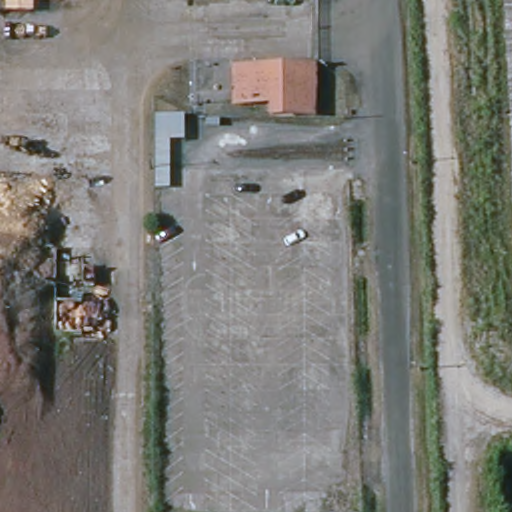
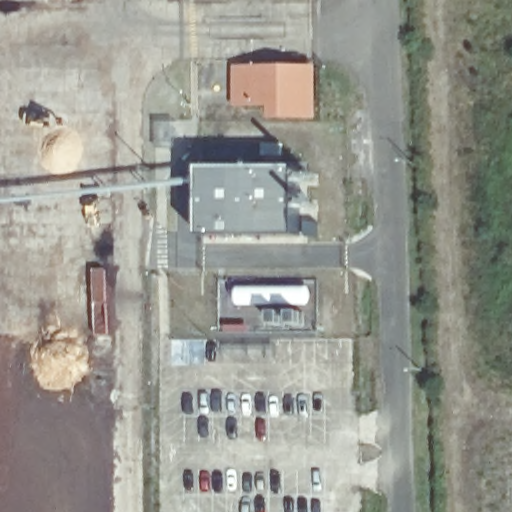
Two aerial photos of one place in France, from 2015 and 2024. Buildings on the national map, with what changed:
unchanged [(303,5),(245,4),(245,0),(303,0),(303,5)]
unchanged [(315,64),(314,121),(271,121),(269,104),(234,101),(234,64),(315,64)]
new [(202,237),(202,170),(297,169),(298,237),(202,237)]

